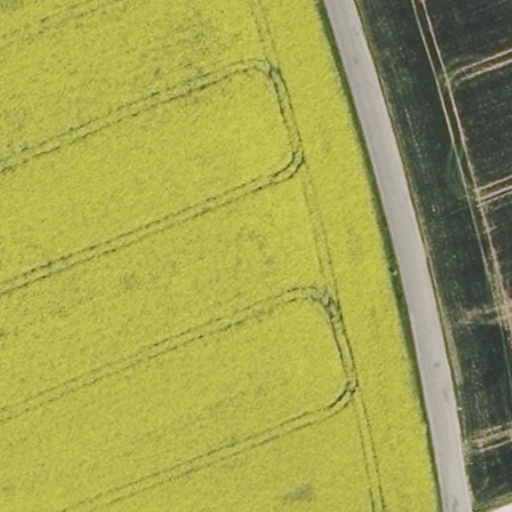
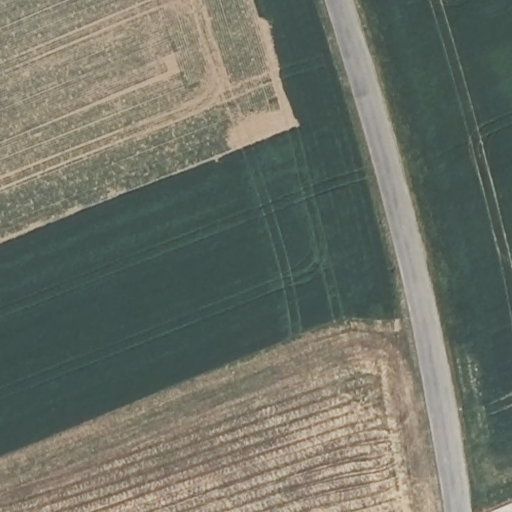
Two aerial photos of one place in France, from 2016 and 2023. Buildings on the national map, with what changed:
[]

